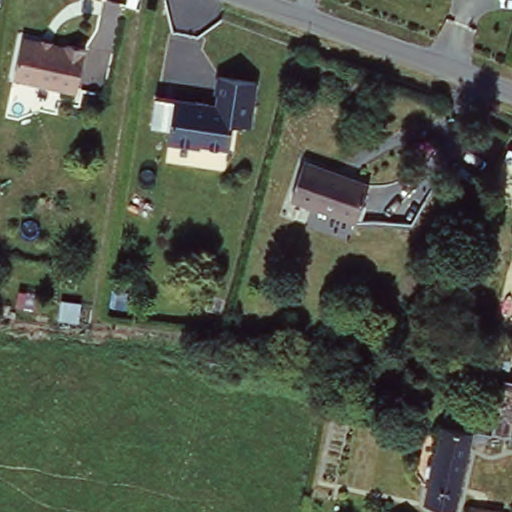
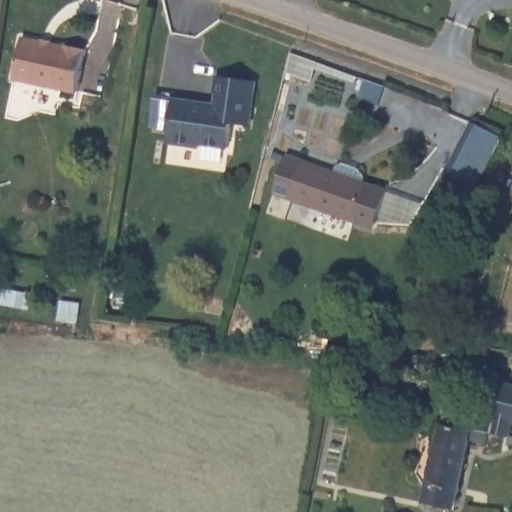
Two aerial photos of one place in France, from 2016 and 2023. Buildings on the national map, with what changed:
unchanged [(17,31),(64,40),(65,38),(86,43),(77,85),(9,71),(17,31)]
unchanged [(220,97),(222,72),(266,77),(261,125),(239,122),(235,148),(174,142),(181,93),(220,97)]
new [(480,186),(447,170),(473,120),(506,136),(480,186)]
unchanged [(368,179),(357,216),(290,194),(303,157),(368,179)]
unchanged [(491,423),(498,381),(512,383),(512,428),(491,423)]
unchanged [(440,416),(485,422),(482,434),(465,430),(452,503),(425,498),(440,416)]
unchanged [(502,511),(509,512),(469,512),(471,500),(501,505),(502,511)]

